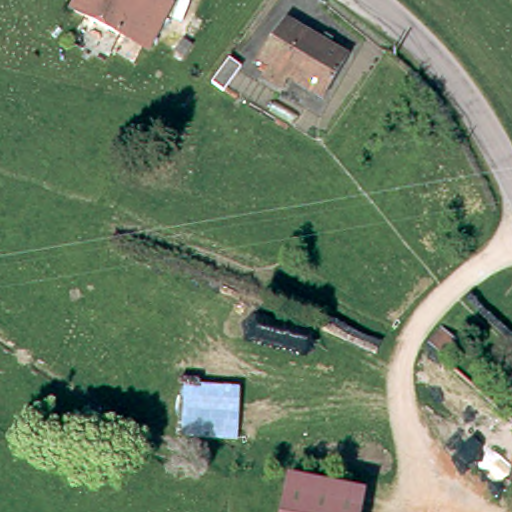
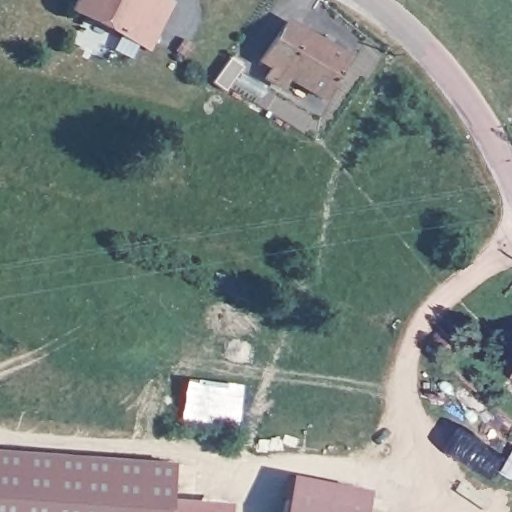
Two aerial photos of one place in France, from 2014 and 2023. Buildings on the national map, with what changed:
unchanged [(147,38),(139,53),(66,15),(73,0),(142,0),(153,5),(138,33),(147,38)]
unchanged [(311,103),(279,75),(271,84),(258,72),(266,64),(253,54),(290,14),(319,40),(328,33),(334,39),(326,46),(343,62),(311,103)]
unchanged [(224,64),(236,73),(217,95),(206,86),(224,64)]
unchanged [(433,327),(445,338),(434,351),(422,340),(433,327)]
unchanged [(236,389),(233,434),(183,429),(183,379),(236,389)]
new [(171,463),(168,512),(0,512),(0,451),(171,463)]
unchanged [(284,479),(357,492),(354,512),(278,512),(284,479)]

